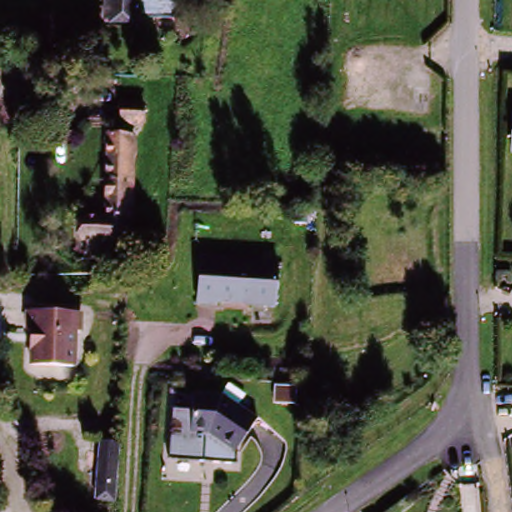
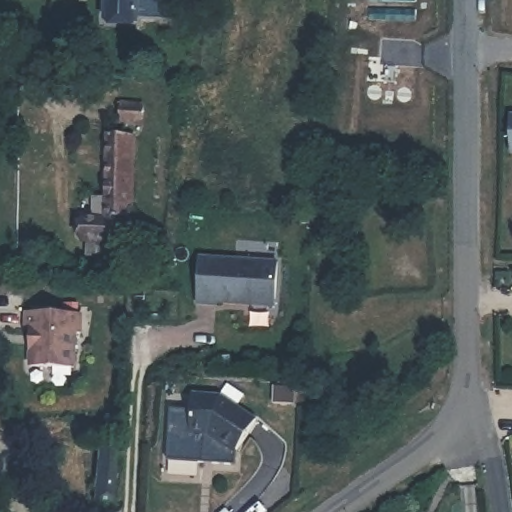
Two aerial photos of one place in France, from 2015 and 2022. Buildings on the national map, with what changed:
unchanged [(108,17),(109,0),(143,0),(142,17),(108,17)]
unchanged [(177,18),(142,17),(143,0),(177,0),(177,18)]
unchanged [(144,120),(120,119),(120,96),(145,100),(144,120)]
unchanged [(110,127),(137,127),(135,213),(108,213),(110,127)]
unchanged [(79,236),(80,212),(108,213),(135,213),(133,238),(79,236)]
unchanged [(207,307),(207,260),(285,262),(285,305),(225,304),(225,307),(207,307)]
unchanged [(38,332),(33,330),(35,313),(87,315),(87,332),(82,333),(80,367),(37,367),(38,332)]
unchanged [(264,420),(240,449),(215,427),(197,427),(198,390),(228,390),(264,420)]

